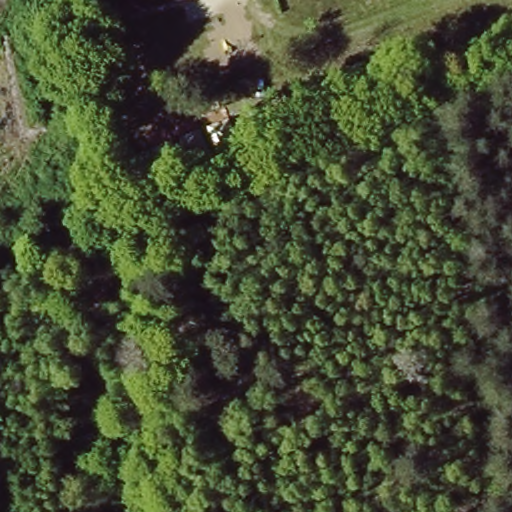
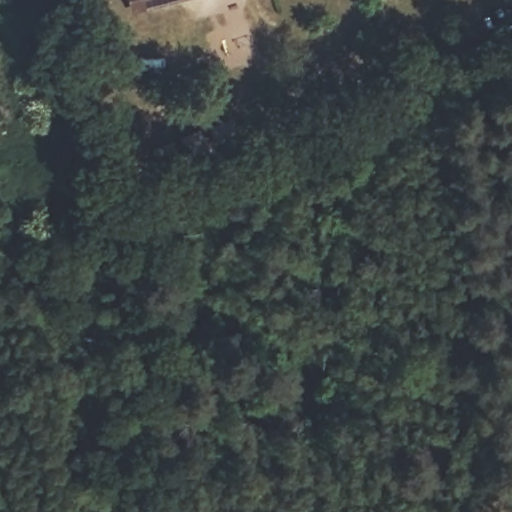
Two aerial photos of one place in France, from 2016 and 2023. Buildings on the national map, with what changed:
unchanged [(118,0),(190,0),(191,2),(122,19),(118,0)]

